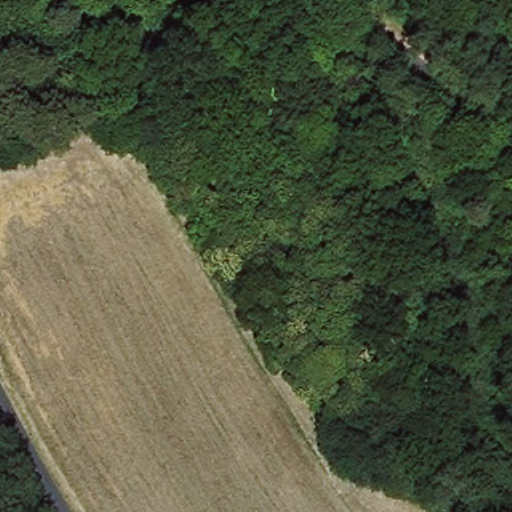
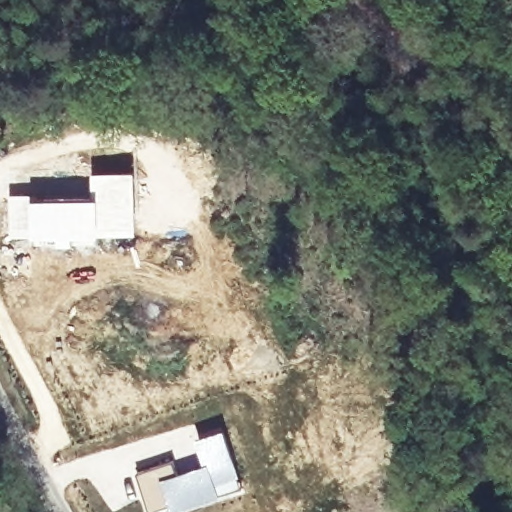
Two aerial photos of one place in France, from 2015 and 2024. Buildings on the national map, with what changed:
new [(32,192),(33,195),(94,193),(91,170),(136,168),(140,234),(100,237),(100,243),(35,247),(35,238),(10,239),(10,192),(32,192)]
new [(224,427),(244,490),(222,497),(208,460),(205,462),(196,436),(224,427)]
new [(173,458),(178,470),(205,462),(208,460),(222,497),(174,512),(171,512),(169,507),(152,512),(147,512),(135,472),(173,458)]

